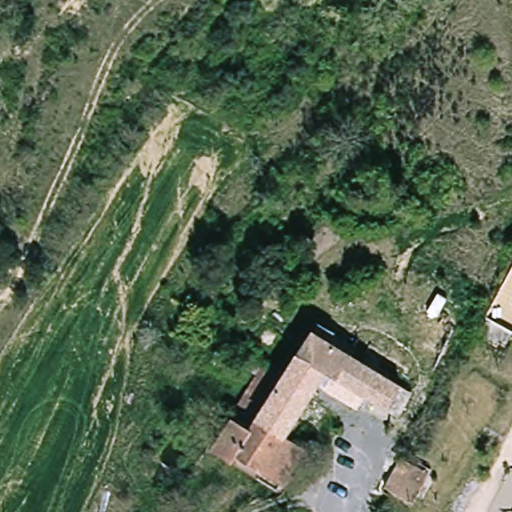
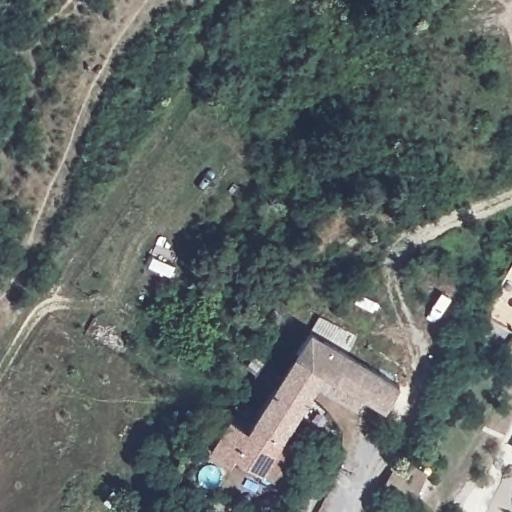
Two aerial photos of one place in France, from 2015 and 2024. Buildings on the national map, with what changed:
unchanged [(322,376),(311,393),(309,397),(281,378),(317,323),(334,332),(328,346),(343,357),(354,342),(414,383),(391,426),(322,376)]
unchanged [(454,327),(466,338),(448,359),(435,347),(454,327)]
unchanged [(281,378),(247,432),(230,421),(268,365),(281,378)]
unchanged [(273,494),(253,481),(209,452),(215,442),(230,421),(247,432),(281,378),(309,397),(280,441),(301,452),(273,494)]
unchanged [(419,498),(401,486),(394,481),(410,455),(436,471),(431,479),(419,498)]

